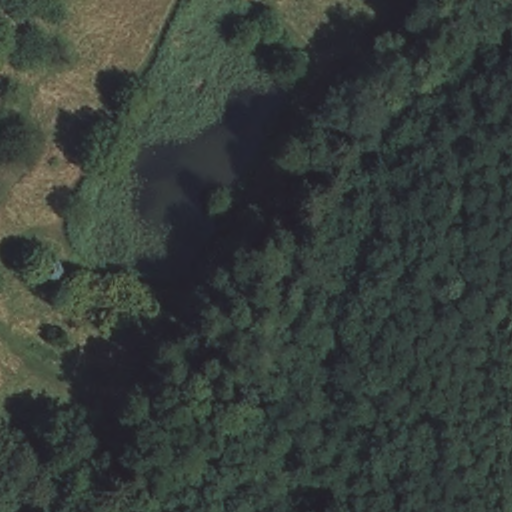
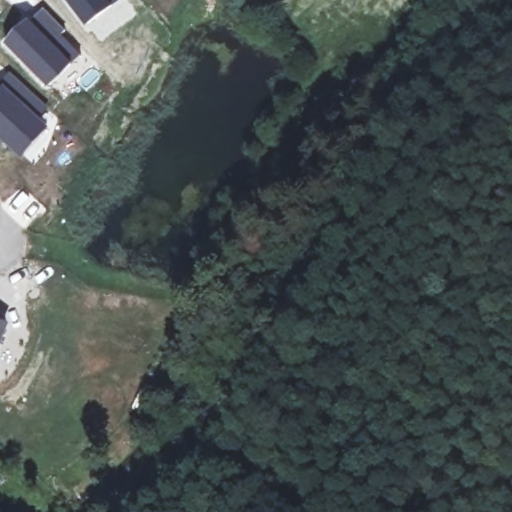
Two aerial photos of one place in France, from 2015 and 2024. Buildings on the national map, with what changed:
new [(66,0),(118,0),(86,25),(66,0)]
new [(42,5),(83,51),(48,86),(4,41),(42,5)]
new [(20,156),(0,137),(0,83),(1,81),(9,71),(50,107),(41,117),(50,125),(20,156)]
new [(10,321),(0,344),(0,317),(10,321)]

